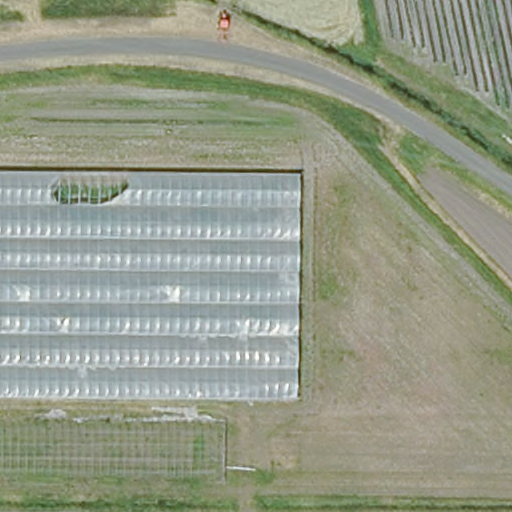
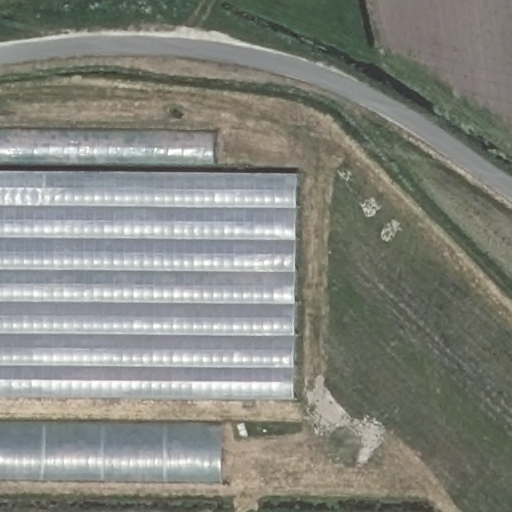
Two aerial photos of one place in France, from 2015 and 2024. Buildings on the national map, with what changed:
unchanged [(0,161),(291,162),(290,395),(0,394),(0,161)]
unchanged [(0,477),(0,419),(224,422),(223,480),(0,477)]

